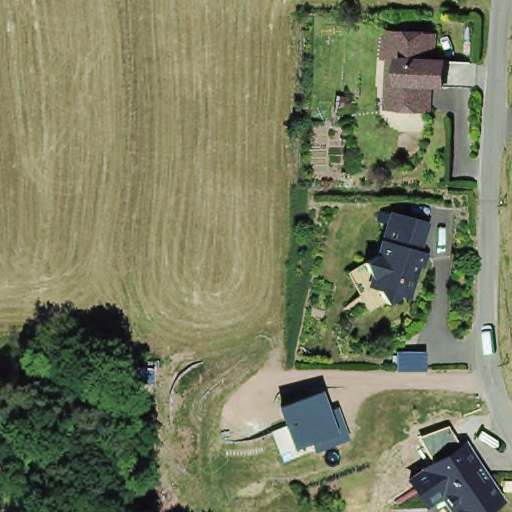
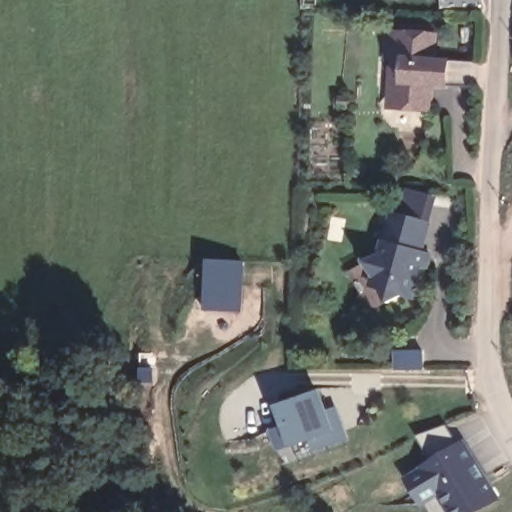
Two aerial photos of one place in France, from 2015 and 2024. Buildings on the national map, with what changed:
unchanged [(441,36),(443,60),(481,64),(478,92),(434,91),(433,110),(395,109),(398,35),(441,36)]
unchanged [(437,220),(415,303),(375,287),(397,207),(437,220)]
new [(241,261),(241,314),(201,312),(202,259),(241,261)]
unchanged [(422,351),(423,371),(395,372),(394,351),(422,351)]
unchanged [(319,391),(326,411),(337,407),(348,439),(313,452),(309,442),(289,449),(274,406),(319,391)]
unchanged [(434,464),(417,436),(447,426),(459,448),(434,464)]
unchanged [(498,492),(472,512),(456,512),(442,493),(426,503),(411,480),(465,443),(498,492)]

